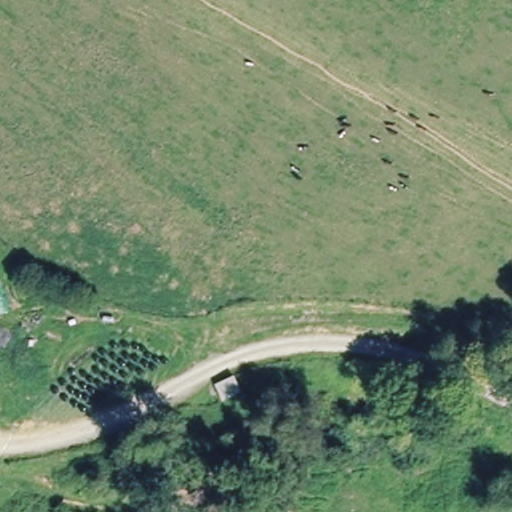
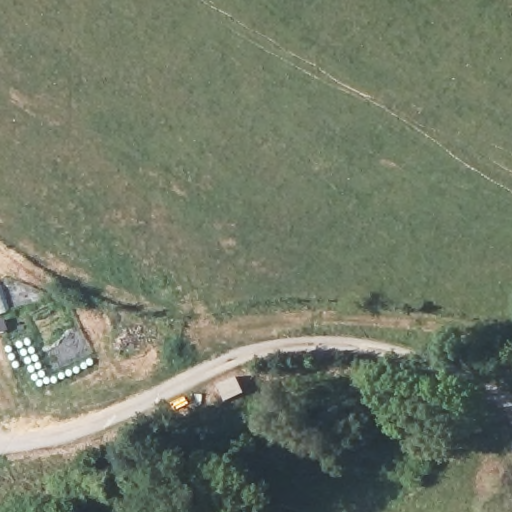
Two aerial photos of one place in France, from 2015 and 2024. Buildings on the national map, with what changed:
[]

